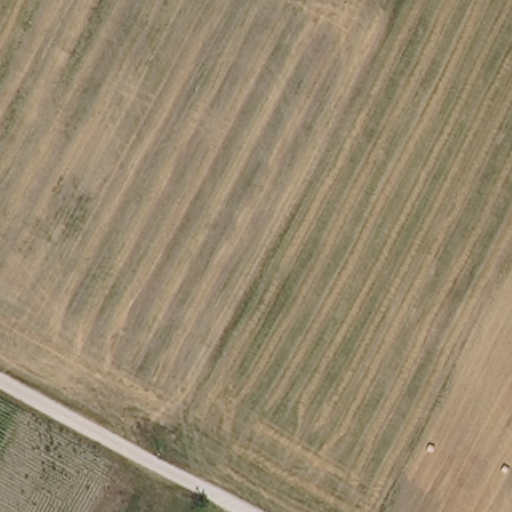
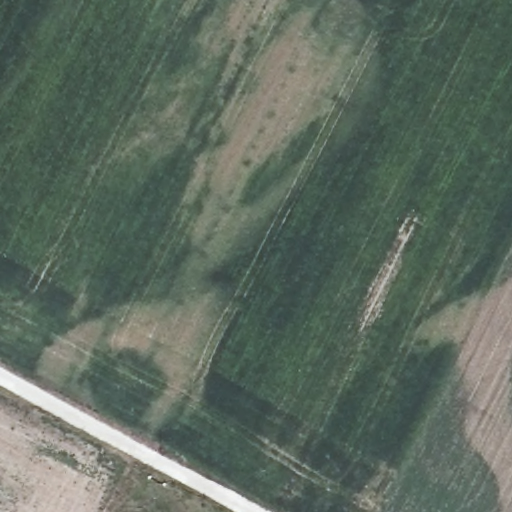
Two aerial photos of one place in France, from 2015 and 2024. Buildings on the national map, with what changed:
[]

